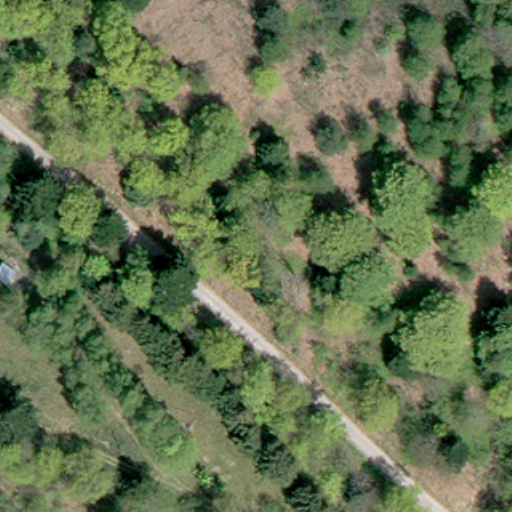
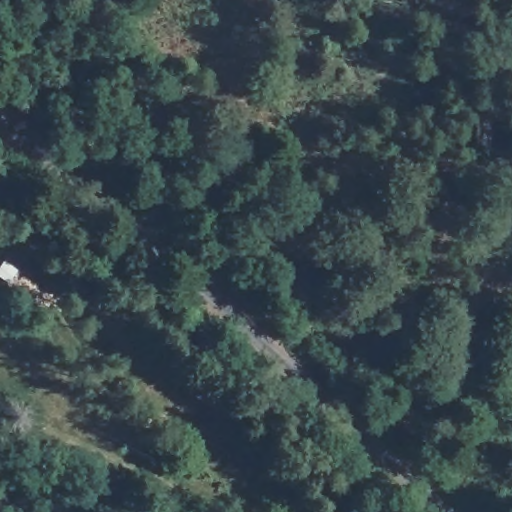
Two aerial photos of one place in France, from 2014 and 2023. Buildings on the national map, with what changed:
unchanged [(0,282),(0,257),(26,278),(15,292),(0,282)]

